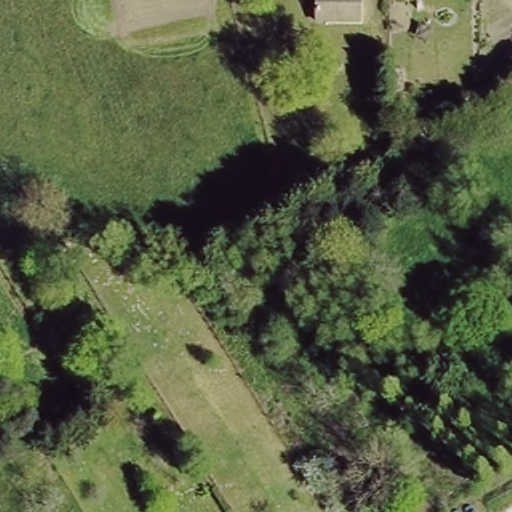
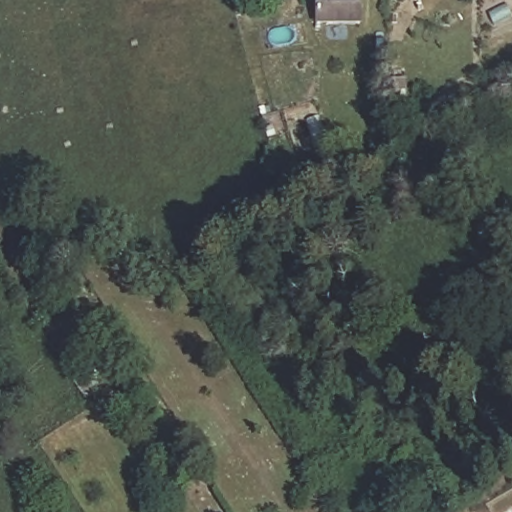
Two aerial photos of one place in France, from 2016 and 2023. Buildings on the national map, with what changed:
unchanged [(319,22),(319,0),(363,0),(363,23),(319,22)]
unchanged [(326,169),(339,162),(348,178),(336,185),(326,169)]

